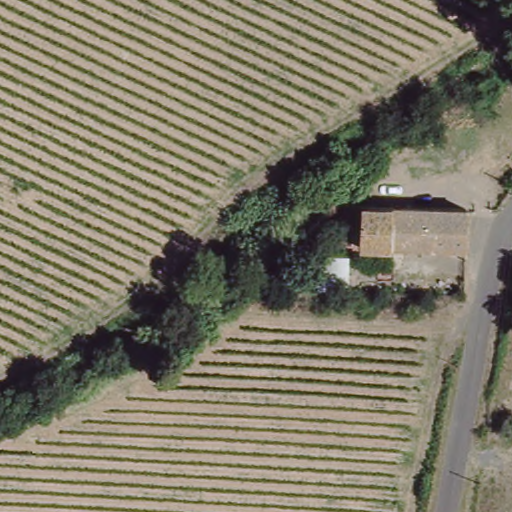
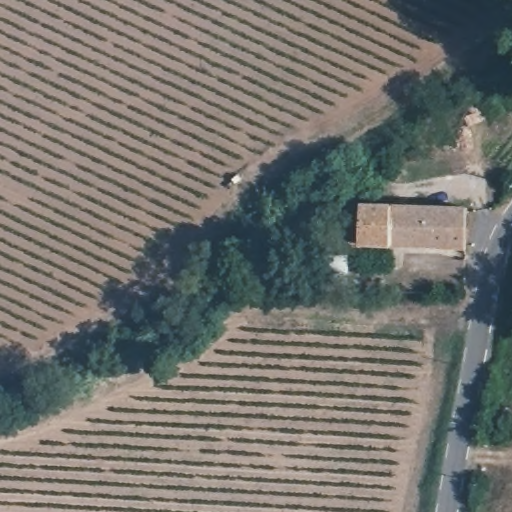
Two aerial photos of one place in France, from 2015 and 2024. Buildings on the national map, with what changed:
unchanged [(478,247),(358,247),(356,203),(479,208),(478,247)]

